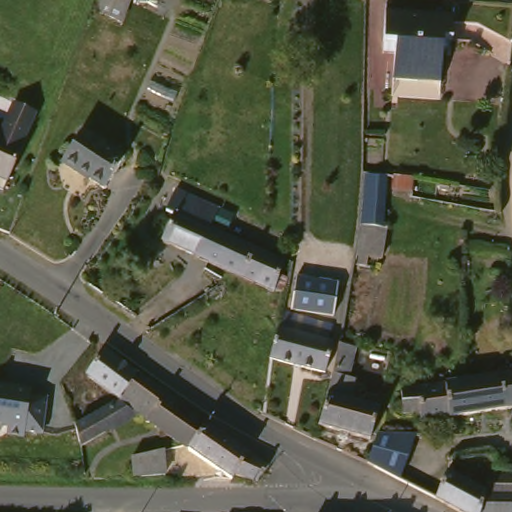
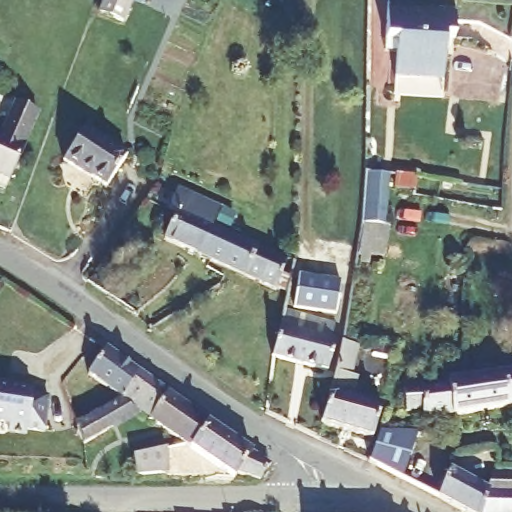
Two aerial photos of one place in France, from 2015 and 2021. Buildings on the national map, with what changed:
unchanged [(98,16),(103,0),(128,0),(121,23),(98,16)]
unchanged [(393,78),(394,44),(381,43),(383,13),(451,17),(449,42),(439,41),(439,49),(442,50),(440,81),(393,78)]
unchanged [(16,101),(36,111),(34,115),(22,143),(26,144),(10,179),(0,175),(0,133),(15,102),(16,101)]
unchanged [(83,171),(80,175),(65,164),(85,132),(128,157),(107,187),(83,171)]
unchanged [(363,173),(386,175),(383,227),(389,228),(384,260),(356,255),(363,173)]
unchanged [(418,179),(418,190),(401,188),(403,176),(418,179)]
unchanged [(176,212),(170,208),(177,193),(179,190),(219,207),(213,221),(211,227),(202,246),(199,252),(164,237),(176,212)]
unchanged [(212,227),(223,231),(237,237),(254,244),(263,248),(289,258),(277,286),(234,267),(221,262),(212,258),(199,252),(202,246),(211,227),(212,227)]
unchanged [(294,308),(297,288),(339,294),(334,327),(292,321),(294,308)]
unchanged [(291,323),(336,337),(334,347),(338,348),(332,376),(271,363),(271,360),(280,320),(291,323)]
unchanged [(337,391),(337,390),(344,340),(355,345),(351,377),(358,379),(354,401),(382,410),(374,440),(327,427),(337,391)]
unchanged [(118,393),(86,371),(105,347),(106,348),(139,371),(118,393)]
unchanged [(118,393),(139,371),(166,391),(147,414),(142,411),(80,443),(75,431),(69,422),(118,393)]
unchanged [(509,372),(512,371),(512,405),(511,406),(425,418),(424,408),(409,410),(407,387),(421,385),(474,377),(485,375),(509,372)]
unchanged [(1,377),(43,384),(42,391),(59,394),(54,428),(37,426),(36,433),(18,431),(20,422),(0,419),(0,384),(1,377)]
unchanged [(187,441),(147,414),(166,391),(210,422),(188,442),(187,441)]
unchanged [(210,422),(269,464),(261,477),(241,468),(233,477),(188,442),(210,422)]
unchanged [(427,438),(436,438),(434,451),(456,457),(449,474),(437,500),(396,480),(370,466),(383,437),(385,437),(427,438)]
unchanged [(166,447),(168,474),(137,477),(135,455),(135,451),(163,448),(166,447)]
unchanged [(449,474),(481,492),(485,475),(512,475),(512,512),(463,512),(437,500),(449,474)]

